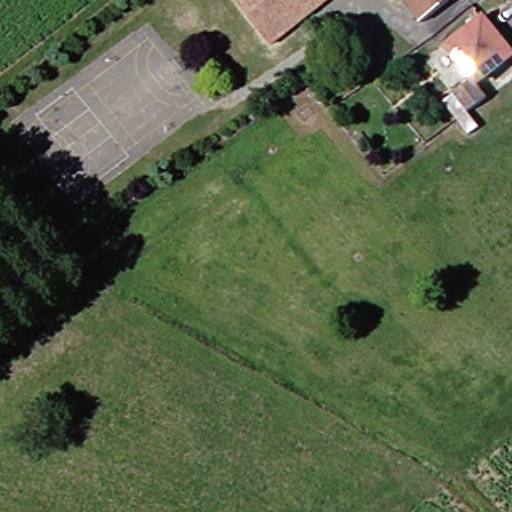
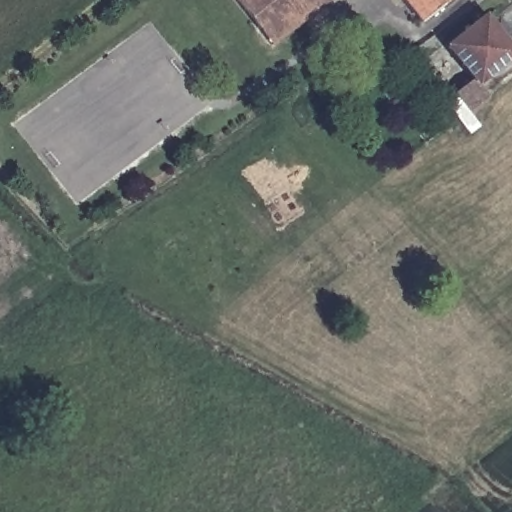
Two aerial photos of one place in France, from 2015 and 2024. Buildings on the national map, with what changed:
unchanged [(243,0),(329,0),(318,9),(280,42),(268,28),(243,0)]
unchanged [(419,7),(414,0),(430,0),(419,7)]
unchanged [(477,3),(435,30),(419,7),(430,0),(475,0),(477,3)]
unchanged [(479,109),(465,92),(483,77),(462,47),(497,20),(512,40),(512,64),(486,82),(497,97),(479,109)]

